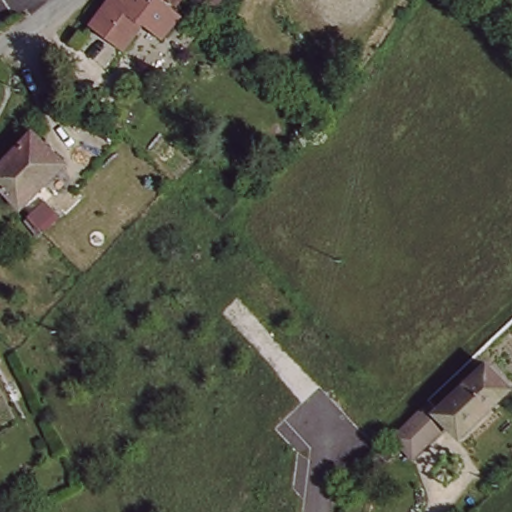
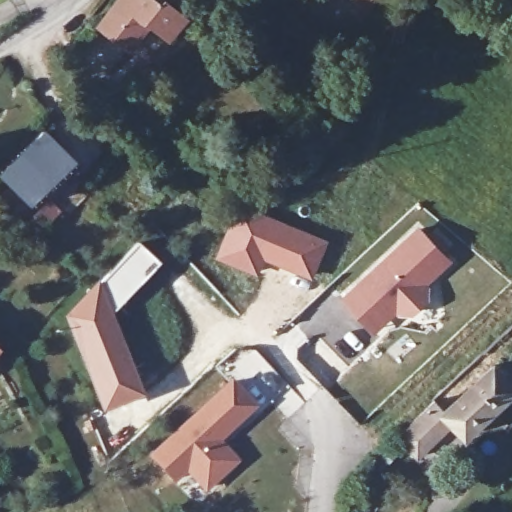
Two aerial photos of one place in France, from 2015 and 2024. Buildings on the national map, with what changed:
unchanged [(166,44),(148,33),(125,60),(97,39),(126,0),(146,0),(180,27),(166,44)]
unchanged [(154,0),(192,0),(178,19),(154,0)]
unchanged [(60,163),(19,208),(0,189),(0,170),(30,137),(60,163)]
new [(240,204),(322,240),(307,279),(262,260),(255,279),(215,260),(240,204)]
unchanged [(52,219),(40,231),(26,217),(36,205),(52,219)]
new [(358,319),(336,297),(367,266),(373,261),(410,225),(440,257),(416,280),(419,284),(419,295),(404,310),(392,310),(389,307),(379,317),(378,316),(367,328),(358,319)]
new [(107,272),(135,243),(158,264),(121,304),(111,313),(143,396),(100,413),(61,315),(107,272)]
unchanged [(512,389),(460,438),(449,432),(415,463),(390,441),(429,405),(437,411),(489,363),(512,388),(512,389)]
new [(220,442),(237,461),(205,493),(186,473),(174,484),(148,456),(230,379),(257,406),(220,442)]

